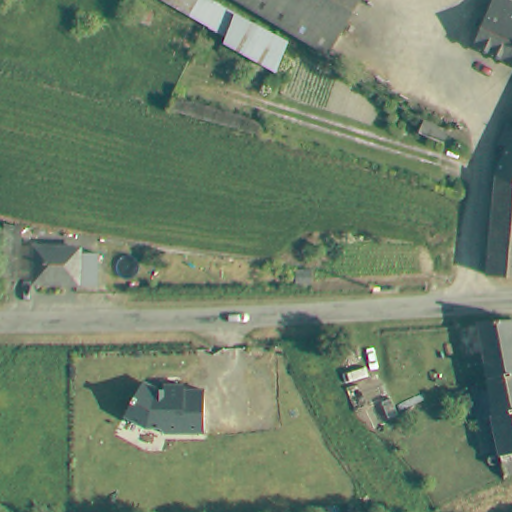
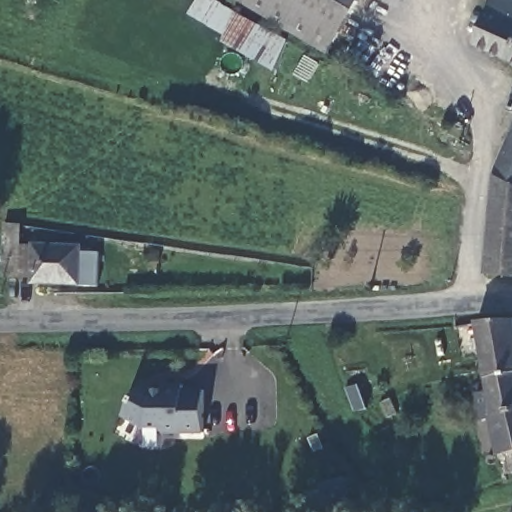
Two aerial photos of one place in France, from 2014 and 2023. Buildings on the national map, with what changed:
unchanged [(192,17),(201,0),(210,0),(287,46),(277,75),(225,46),(229,40),(207,27),(192,17)]
unchanged [(229,0),(344,0),(309,47),(229,0)]
unchanged [(329,59),(309,47),(344,0),(347,0),(358,8),(329,59)]
unchanged [(358,8),(347,0),(362,0),(358,8)]
unchanged [(473,47),(495,0),(506,0),(512,3),(512,65),(473,47)]
unchanged [(446,150),(423,137),(429,127),(452,140),(446,150)]
unchanged [(498,187),(494,186),(506,154),(496,151),(504,130),(512,133),(512,192),(498,187)]
unchanged [(498,187),(512,192),(512,282),(485,284),(494,186),(498,187)]
unchanged [(17,282),(0,281),(0,262),(2,229),(22,231),(17,282)]
unchanged [(41,247),(84,250),(82,285),(39,283),(41,247)]
unchanged [(486,382),(484,377),(480,361),(467,362),(465,326),(512,322),(512,376),(486,382)]
unchanged [(504,477),(500,457),(492,416),(480,418),(476,392),(487,390),(486,382),(512,376),(512,475),(504,477)]
unchanged [(159,427),(146,429),(124,416),(142,382),(157,388),(186,388),(186,391),(207,392),(205,437),(165,437),(159,427)]

